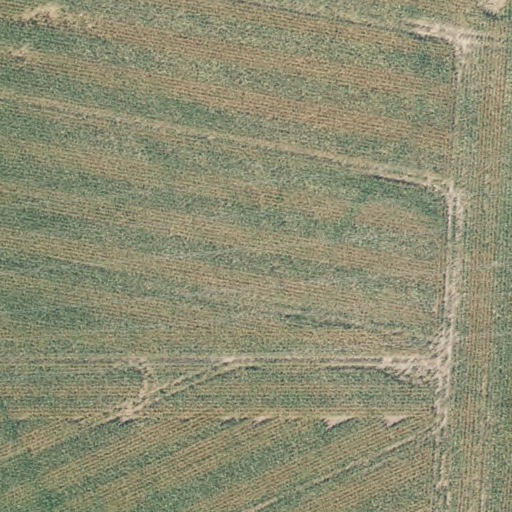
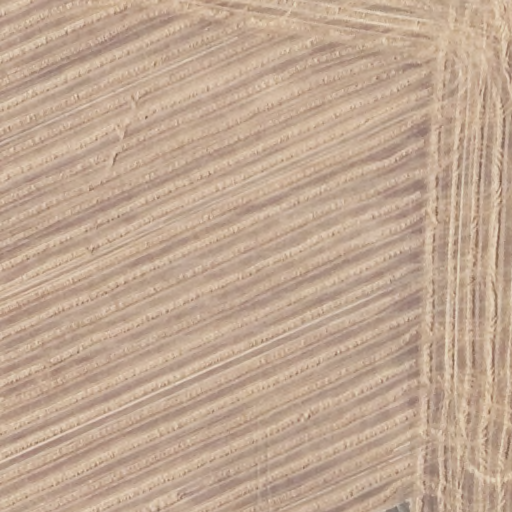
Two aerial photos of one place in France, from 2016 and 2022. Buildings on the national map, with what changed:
[]

